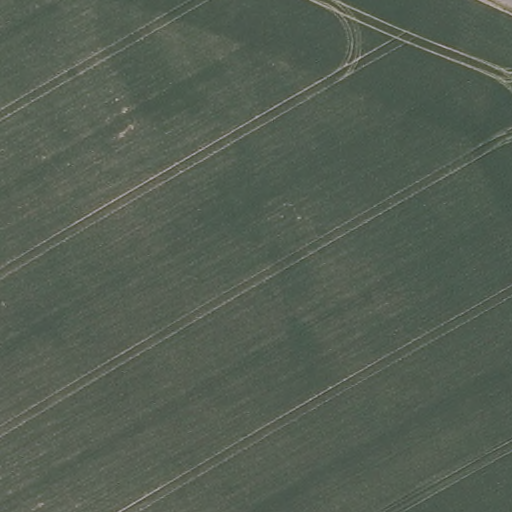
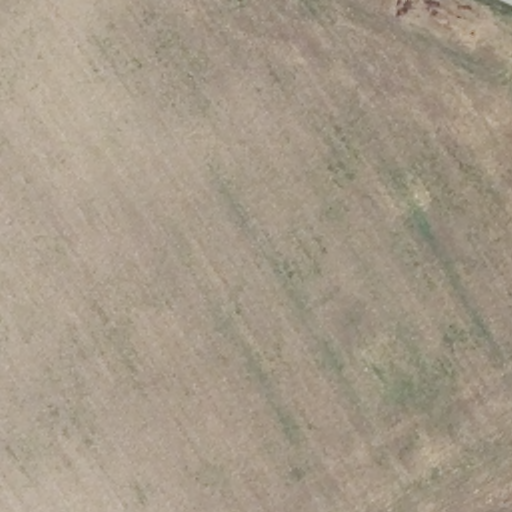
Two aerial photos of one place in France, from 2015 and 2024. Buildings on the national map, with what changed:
[]

